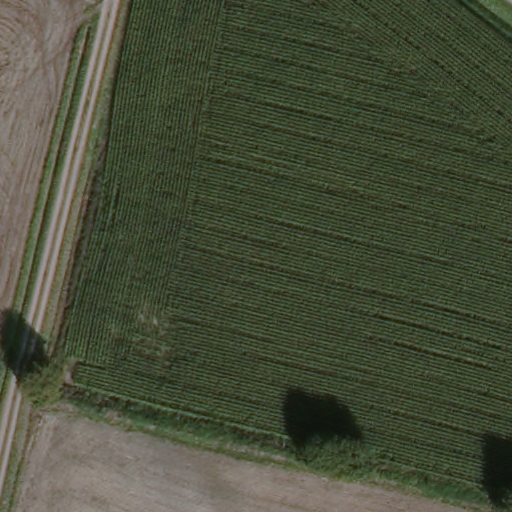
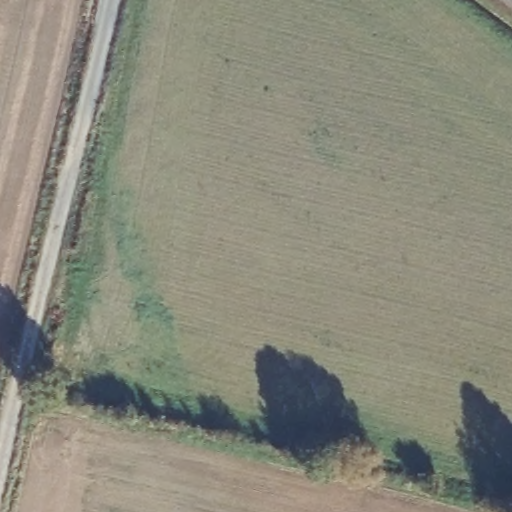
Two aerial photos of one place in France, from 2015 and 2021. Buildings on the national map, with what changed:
[]

